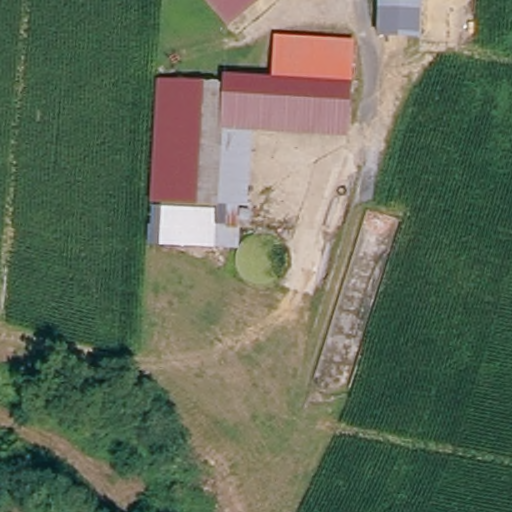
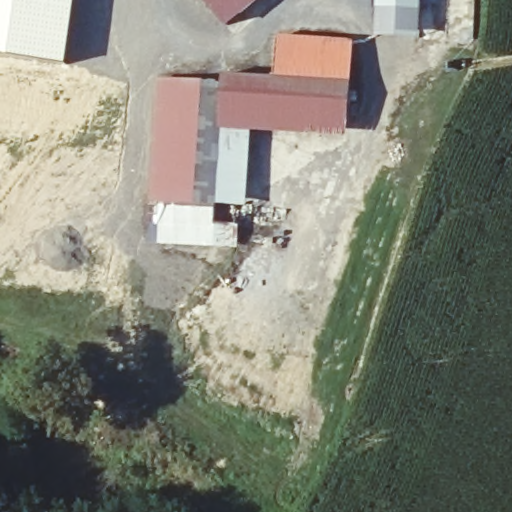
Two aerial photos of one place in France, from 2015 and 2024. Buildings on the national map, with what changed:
new [(77,0),(67,65),(0,57),(0,0),(77,0)]
unchanged [(206,0),(247,0),(220,19),(206,0)]
unchanged [(389,41),(376,40),(380,0),(423,0),(418,44),(389,41)]
unchanged [(350,88),(333,87),(274,84),(276,40),(353,43),(350,88)]
unchanged [(348,127),(255,123),(230,121),(225,210),(153,207),(159,86),(231,90),(231,82),(274,84),(333,87),(350,88),(348,127)]
unchanged [(153,207),(225,210),(230,121),(255,123),(251,208),(242,209),(240,250),(151,245),(153,207)]

